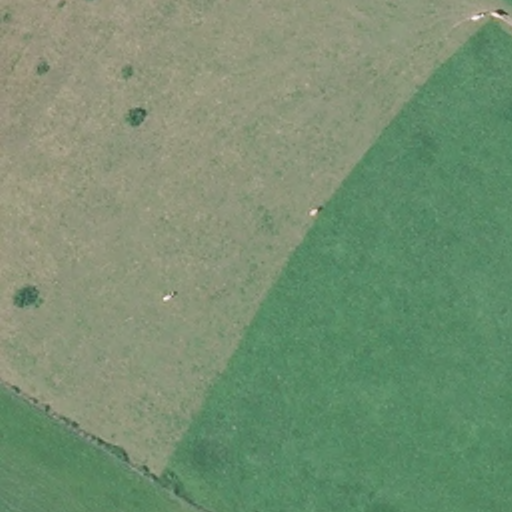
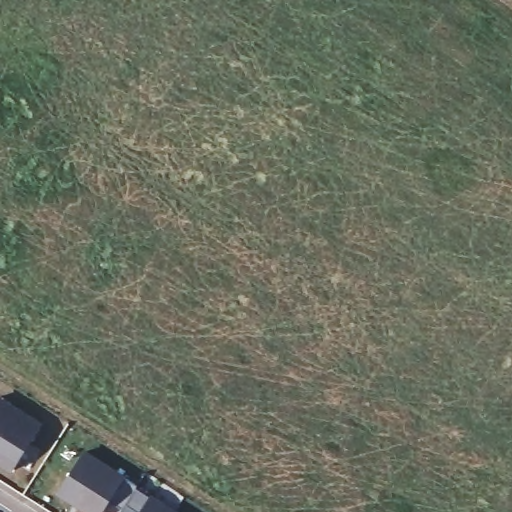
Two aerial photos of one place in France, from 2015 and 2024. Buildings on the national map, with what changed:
new [(13,471),(0,462),(0,397),(40,423),(13,471)]
new [(85,454),(139,488),(124,511),(110,501),(102,512),(94,512),(76,501),(75,504),(59,494),(85,454)]
new [(124,511),(139,488),(150,496),(178,512),(123,512),(124,511)]

